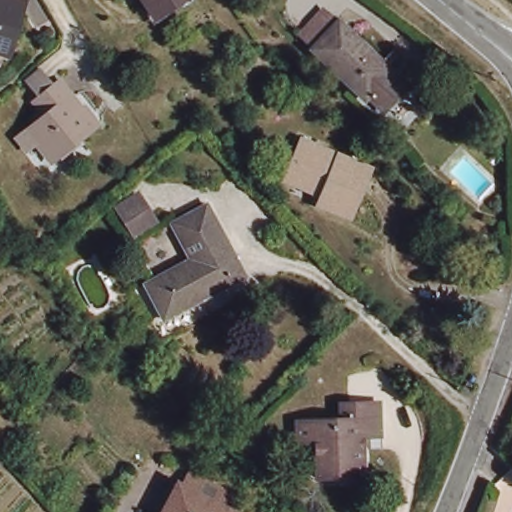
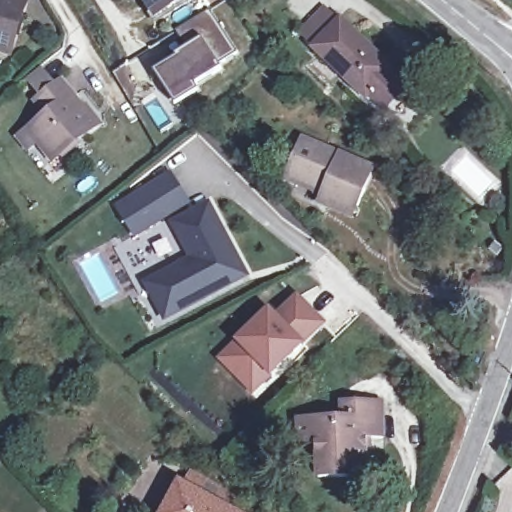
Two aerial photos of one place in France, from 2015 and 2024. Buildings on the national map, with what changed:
unchanged [(21,0),(20,4),(24,5),(9,57),(0,55),(0,0),(21,0)]
unchanged [(146,0),(181,0),(156,16),(146,0)]
new [(208,8),(238,53),(221,65),(201,38),(186,49),(174,30),(208,8)]
unchanged [(393,84),(409,98),(392,116),(376,101),(371,106),(319,58),(303,42),(329,15),(345,30),(397,80),(393,84)]
new [(186,49),(201,38),(221,65),(223,69),(198,87),(201,92),(176,106),(154,71),(186,49)]
unchanged [(25,142),(34,134),(53,119),(42,105),(48,101),(33,83),(48,72),(62,89),(65,87),(99,128),(57,162),(43,145),(33,153),(25,142)]
unchanged [(334,164),(364,177),(348,216),(317,203),(319,199),(281,183),(298,144),(336,160),(334,164)]
unchanged [(118,211),(139,197),(157,225),(136,238),(118,211)]
unchanged [(251,280),(209,302),(208,300),(168,321),(151,287),(196,263),(178,227),(213,208),(251,280)]
new [(270,308),(277,315),(298,294),(302,298),(323,319),(263,379),(254,387),(223,355),(231,347),(270,308)]
unchanged [(359,475),(318,476),(317,441),(299,442),(299,420),(343,418),(342,402),(381,401),(382,437),(366,437),(366,446),(364,446),(366,464),(358,464),(359,475)]
unchanged [(179,493),(183,495),(191,481),(236,505),(233,512),(169,512),(179,493)]

